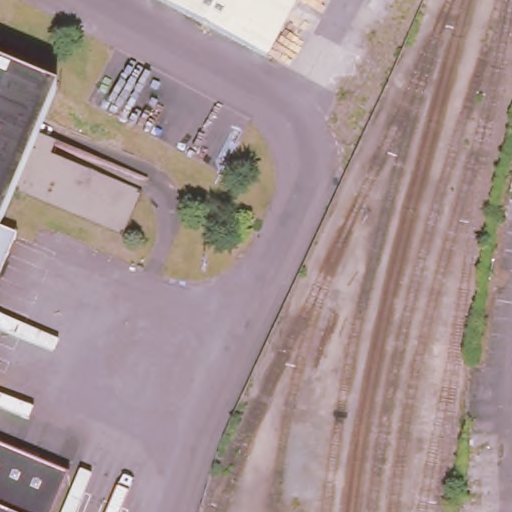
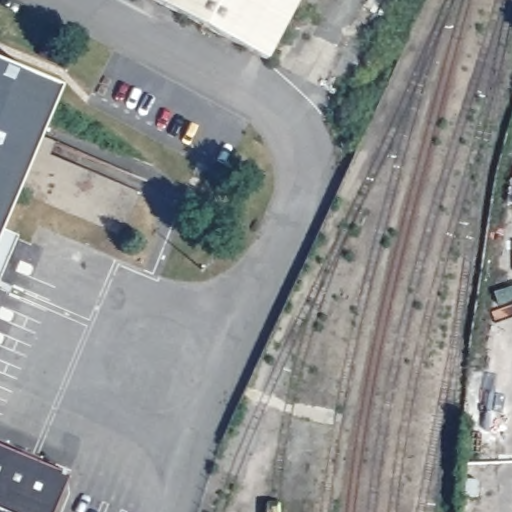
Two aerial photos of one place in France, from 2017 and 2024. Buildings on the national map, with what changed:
unchanged [(152,0),(294,0),(263,59),(152,0)]
unchanged [(30,144),(11,187),(0,153),(0,68),(52,90),(30,144)]
unchanged [(137,189),(120,232),(11,187),(30,144),(137,189)]
unchanged [(0,213),(0,153),(11,187),(0,213)]
unchanged [(0,266),(0,228),(13,234),(0,266)]
unchanged [(46,512),(0,512),(0,447),(62,473),(46,512)]

